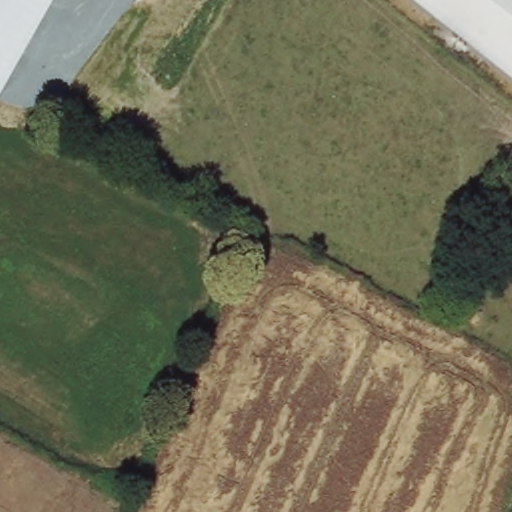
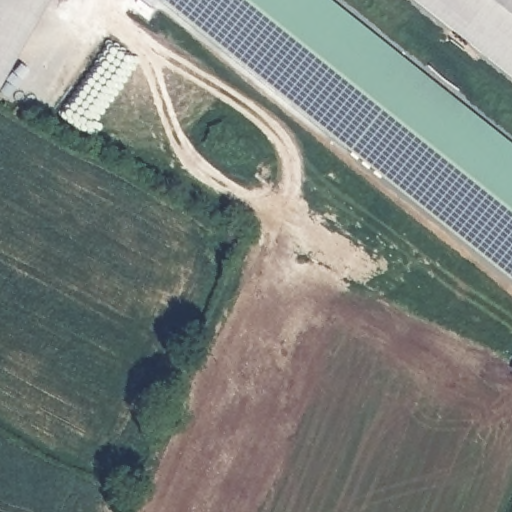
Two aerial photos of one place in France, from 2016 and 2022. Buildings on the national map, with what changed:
unchanged [(0,0),(52,0),(0,94),(0,0)]
new [(161,0),(329,0),(512,146),(512,279),(161,0)]
unchanged [(412,0),(512,0),(512,80),(412,0)]

